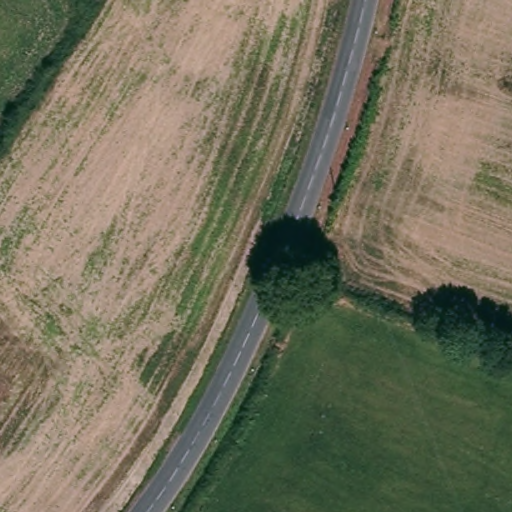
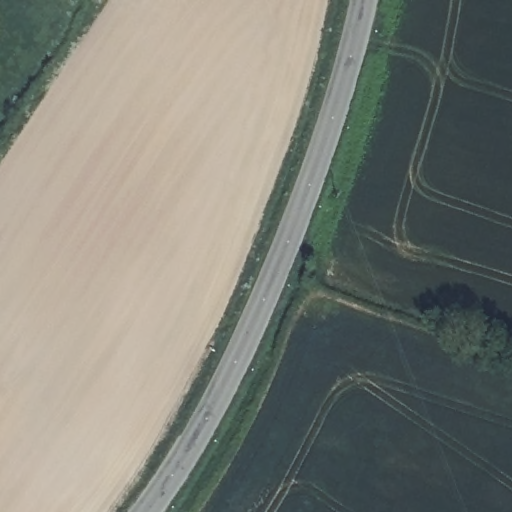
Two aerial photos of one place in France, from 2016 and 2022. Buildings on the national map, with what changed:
[]

